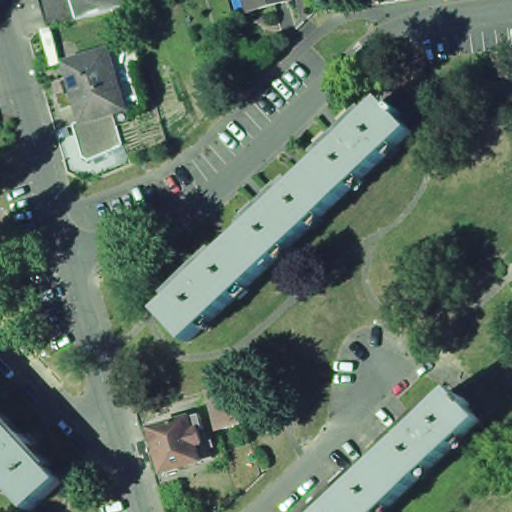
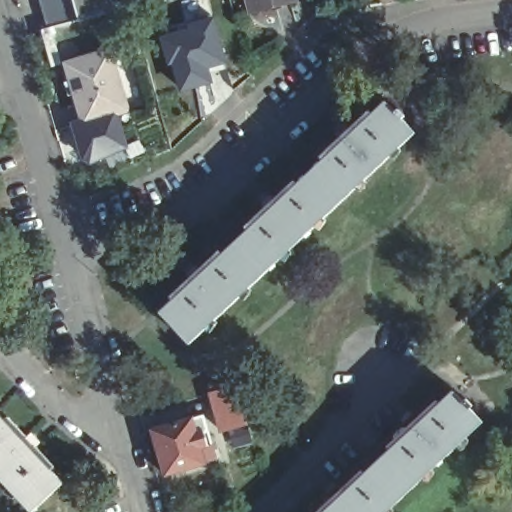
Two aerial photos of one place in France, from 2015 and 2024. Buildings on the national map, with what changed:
unchanged [(79,19),(48,27),(40,0),(73,0),(77,10),(79,19)]
unchanged [(79,20),(79,19),(77,10),(73,0),(129,0),(131,5),(79,20)]
unchanged [(252,0),(299,0),(255,12),(252,0)]
new [(213,15),(226,64),(210,69),(213,83),(178,92),(158,34),(213,15)]
unchanged [(121,21),(132,18),(136,29),(125,33),(121,21)]
unchanged [(75,105),(79,104),(75,90),(69,91),(68,86),(73,84),(67,64),(110,51),(127,109),(84,122),(83,119),(80,119),(75,105)]
unchanged [(401,117),(404,114),(410,120),(407,124),(420,138),(345,208),(315,177),(348,146),(345,143),(354,134),(358,138),(391,106),(401,117)]
unchanged [(345,208),(270,278),(241,247),(273,217),(270,213),(280,204),(283,208),(315,177),(345,208)]
unchanged [(270,278),(195,349),(165,317),(199,286),(195,283),(205,274),(208,278),(241,247),(270,278)]
unchanged [(416,431),(412,427),(422,418),(425,422),(458,391),(468,401),(471,399),(477,405),(474,408),(488,422),(412,493),(383,461),(416,431)]
unchanged [(241,394),(252,433),(232,438),(221,401),(241,394)]
unchanged [(23,440),(27,437),(36,446),(32,449),(63,483),(32,512),(0,478),(0,415),(23,440)]
unchanged [(204,467),(166,478),(153,435),(202,421),(206,435),(215,464),(204,467)]
unchanged [(412,493),(391,512),(329,512),(341,501),(337,497),(347,488),(350,492),(383,461),(412,493)]

